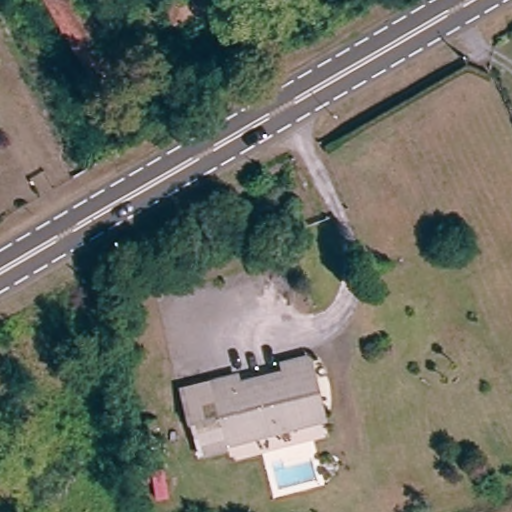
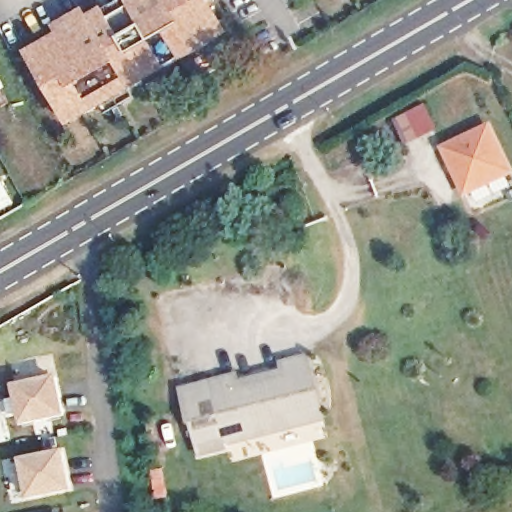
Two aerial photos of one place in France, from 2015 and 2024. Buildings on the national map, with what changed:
new [(53,25),(84,8),(88,15),(115,0),(210,0),(230,33),(68,126),(24,52),(57,34),(53,25)]
demolished [(111,74),(96,84),(43,0),(92,0),(133,61),(129,64),(134,74),(118,84),(111,74)]
demolished [(178,0),(226,0),(199,16),(195,14),(179,24),(168,5),(178,0)]
demolished [(24,92),(21,87),(16,90),(8,77),(19,70),(30,89),(24,92)]
new [(512,167),(512,175),(464,198),(441,148),(491,122),(512,167)]
demolished [(92,323),(67,337),(54,314),(79,299),(92,323)]
unchanged [(211,442),(194,380),(218,374),(218,376),(266,363),(265,361),(280,358),(292,355),(296,371),(307,418),(211,442)]
new [(58,374),(67,416),(21,424),(12,384),(58,374)]
new [(65,449),(73,491),(28,499),(19,458),(65,449)]

